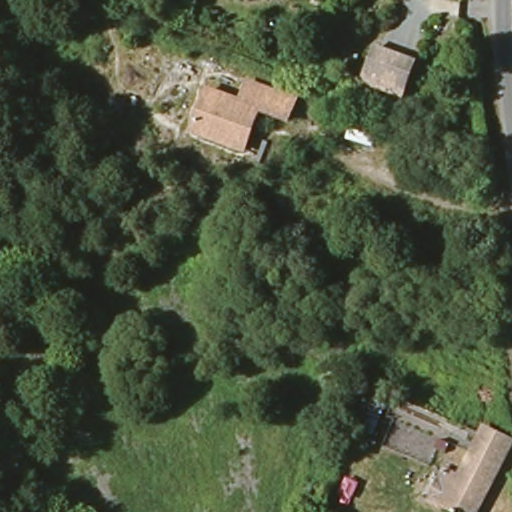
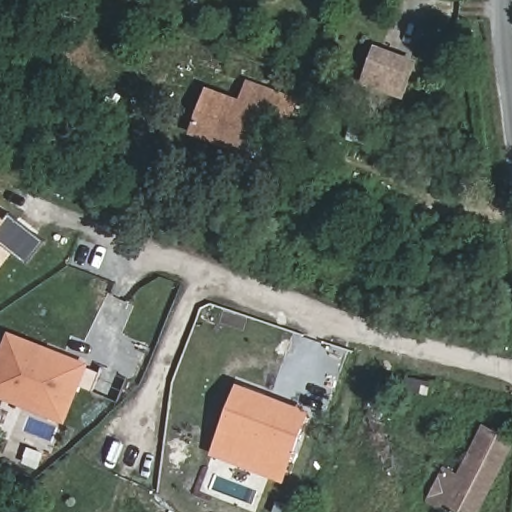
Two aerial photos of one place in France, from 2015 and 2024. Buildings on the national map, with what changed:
unchanged [(367,77),(378,47),(416,60),(405,90),(367,77)]
unchanged [(288,119),(260,107),(244,147),(193,126),(209,85),(242,99),(249,80),(296,98),(288,119)]
new [(3,221),(0,225),(0,219),(3,221)]
new [(9,254),(0,265),(0,248),(9,254)]
new [(9,336),(44,350),(42,356),(65,365),(67,359),(84,365),(63,420),(41,411),(48,395),(28,387),(22,405),(0,396),(0,357),(9,336)]
new [(237,387),(308,416),(282,480),(212,453),(237,387)]
unchanged [(388,403),(377,432),(355,425),(363,397),(388,403)]
unchanged [(444,470),(457,477),(482,428),(512,444),(512,448),(480,512),(449,512),(428,501),(444,470)]

